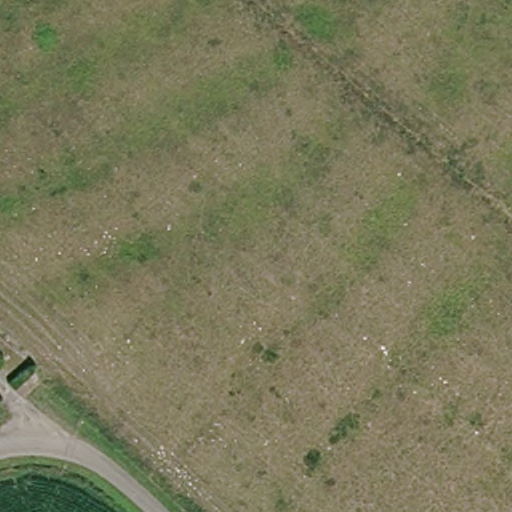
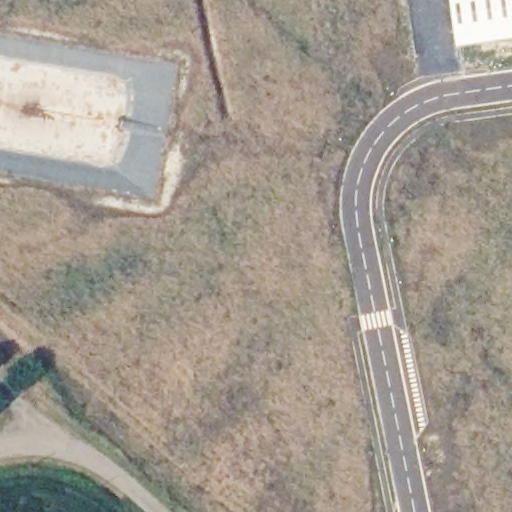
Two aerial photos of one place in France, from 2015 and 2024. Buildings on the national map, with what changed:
new [(450,0),(512,0),(512,39),(456,47),(450,0)]

